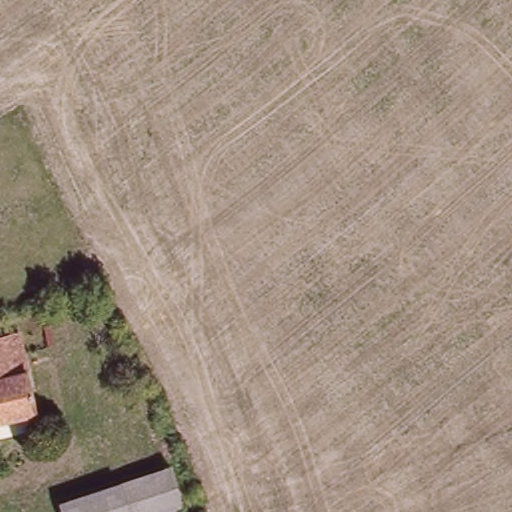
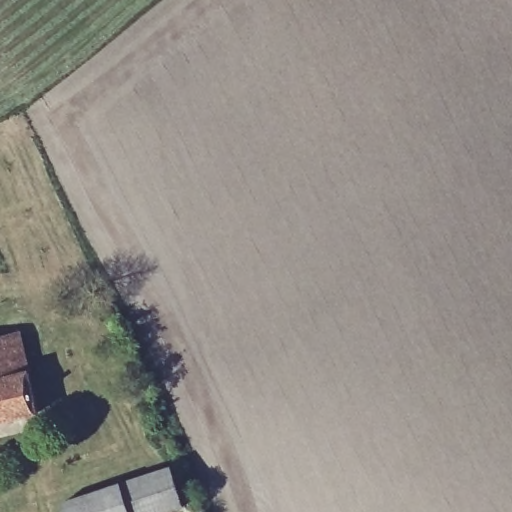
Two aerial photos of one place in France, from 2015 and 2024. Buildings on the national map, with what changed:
unchanged [(40,418),(0,427),(0,344),(24,339),(40,418)]
unchanged [(161,512),(65,512),(62,505),(169,470),(180,506),(161,512)]

